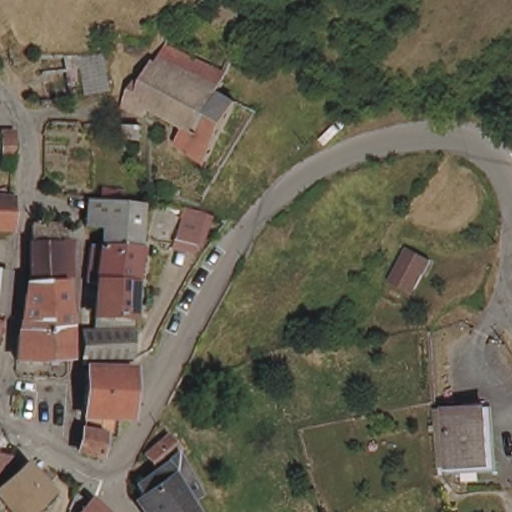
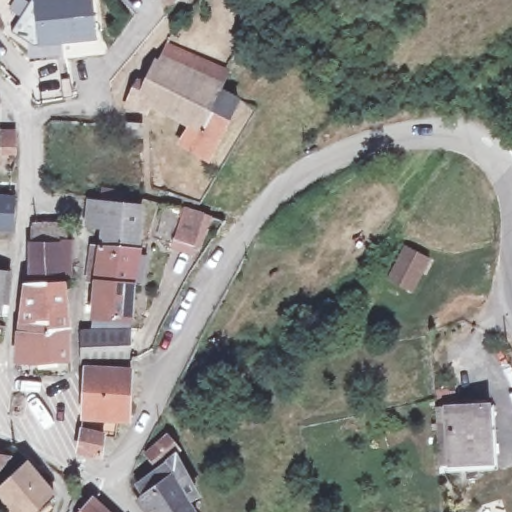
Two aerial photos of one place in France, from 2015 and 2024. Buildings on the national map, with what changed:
new [(13,0),(91,0),(92,39),(57,40),(57,56),(20,57),(20,39),(0,26),(0,17),(13,0)]
unchanged [(135,110),(156,51),(162,45),(237,66),(225,101),(239,106),(209,161),(185,151),(192,133),(146,114),(135,110)]
demolished [(86,89),(81,59),(107,55),(113,87),(86,89)]
unchanged [(7,154),(0,153),(0,131),(9,131),(7,154)]
unchanged [(13,196),(10,226),(0,225),(0,196),(13,196)]
unchanged [(97,249),(97,236),(97,224),(79,223),(77,201),(96,202),(138,206),(138,209),(139,237),(139,250),(140,253),(151,253),(151,285),(140,285),(97,284),(87,284),(87,249),(97,249)]
unchanged [(205,219),(202,232),(202,236),(200,235),(195,234),(192,248),(191,249),(171,243),(177,211),(205,219)]
unchanged [(33,212),(65,213),(67,245),(72,245),(73,273),(66,274),(65,276),(67,287),(27,287),(33,212)]
unchanged [(432,256),(417,291),(390,281),(405,244),(432,256)]
unchanged [(97,284),(140,285),(140,320),(138,324),(97,325),(97,284)]
unchanged [(28,366),(14,364),(21,334),(27,287),(67,287),(68,334),(70,360),(48,364),(39,366),(28,366)]
unchanged [(85,326),(97,325),(138,324),(134,349),(85,355),(77,354),(85,326)]
unchanged [(84,366),(115,364),(116,357),(132,356),(127,410),(82,413),(84,366)]
unchanged [(449,404),(490,403),(491,460),(450,462),(449,404)]
unchanged [(80,450),(82,430),(102,429),(102,449),(80,450)]
unchanged [(163,445),(166,443),(182,434),(192,456),(160,476),(148,457),(163,445)]
unchanged [(0,456),(0,444),(12,446),(0,456)]
unchanged [(26,459),(69,500),(80,512),(21,512),(0,492),(0,488),(3,476),(26,459)]
unchanged [(187,467),(204,505),(194,510),(195,512),(146,512),(133,492),(169,476),(177,472),(187,467)]
unchanged [(110,512),(81,512),(94,497),(110,512)]

